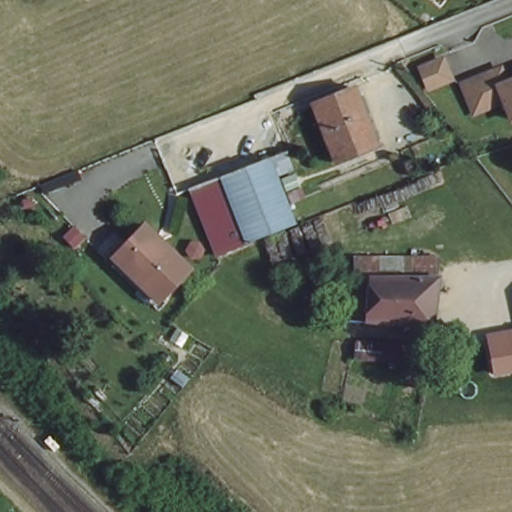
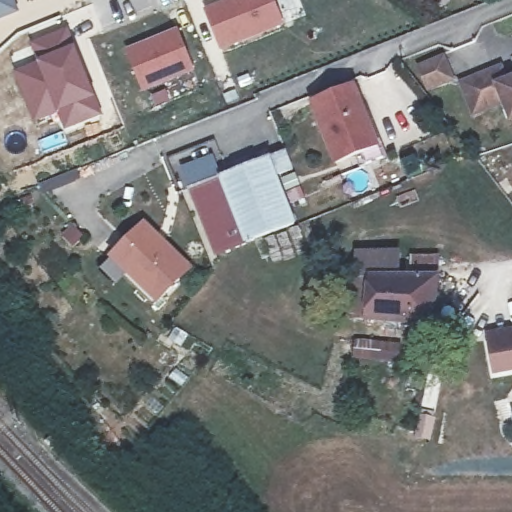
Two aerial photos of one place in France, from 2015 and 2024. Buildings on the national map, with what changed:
new [(0,21),(0,0),(14,0),(20,13),(0,21)]
new [(203,9),(227,0),(274,0),(283,24),(220,50),(203,9)]
new [(63,128),(57,113),(32,122),(12,69),(36,60),(29,41),(69,26),(75,45),(102,113),(63,128)]
new [(143,92),(127,49),(176,29),(195,71),(143,92)]
unchanged [(424,79),(417,62),(440,53),(446,70),(424,79)]
unchanged [(504,96),(474,108),(461,79),(499,63),(505,77),(512,74),(512,114),(504,96)]
unchanged [(313,108),(354,92),(378,148),(338,165),(313,108)]
unchanged [(191,187),(284,150),(289,166),(273,172),(293,223),(217,253),(191,187)]
new [(77,167),(82,178),(42,194),(38,182),(77,167)]
unchanged [(188,271),(154,306),(133,285),(108,260),(143,224),(182,265),(188,271)]
unchanged [(349,278),(360,278),(361,255),(404,257),(403,281),(380,279),(374,320),(345,315),(349,278)]
unchanged [(417,261),(447,264),(445,284),(440,330),(374,320),(380,279),(403,281),(415,282),(417,261)]
unchanged [(492,376),(486,334),(512,329),(512,374),(492,376)]
unchanged [(364,353),(365,334),(394,337),(391,355),(364,353)]

